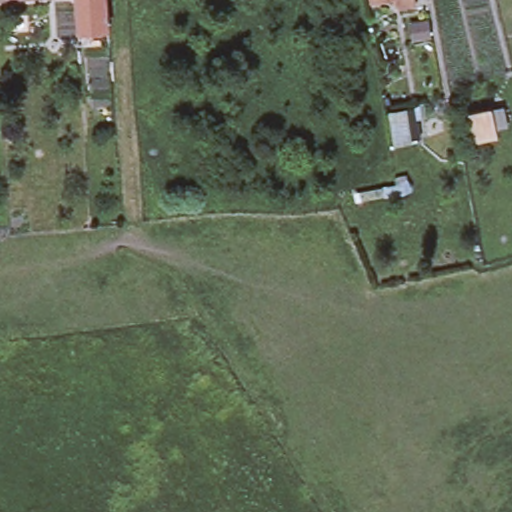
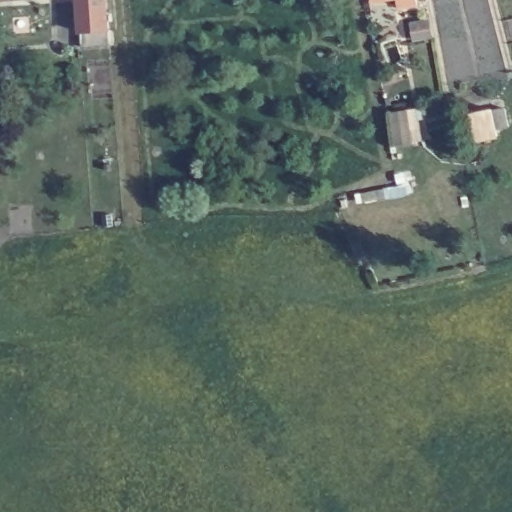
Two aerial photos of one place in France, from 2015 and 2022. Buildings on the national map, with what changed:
unchanged [(22,0),(0,2),(0,0),(22,0)]
unchanged [(101,30),(74,32),(72,0),(98,0),(101,30)]
unchanged [(495,109),(501,135),(480,140),(474,114),(495,109)]

